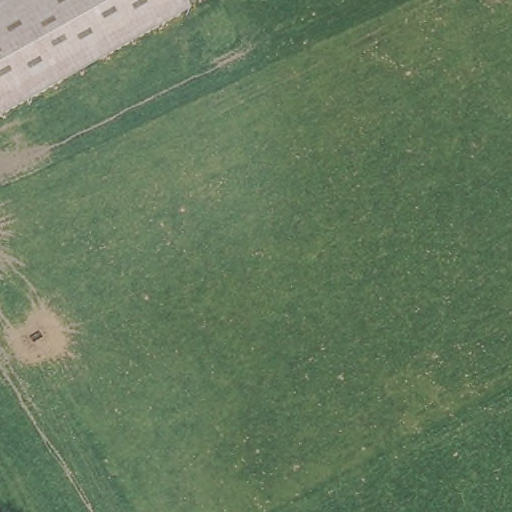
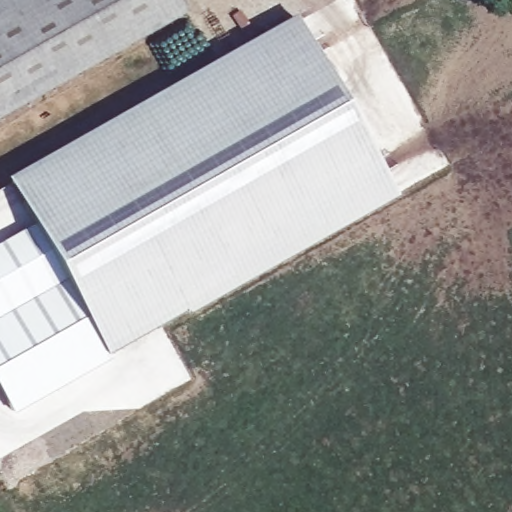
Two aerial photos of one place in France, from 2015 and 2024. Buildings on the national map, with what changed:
unchanged [(0,124),(0,0),(179,0),(188,16),(0,124)]
new [(400,198),(190,316),(187,313),(108,358),(110,362),(15,416),(0,391),(0,246),(35,227),(8,180),(297,18),(400,198)]

